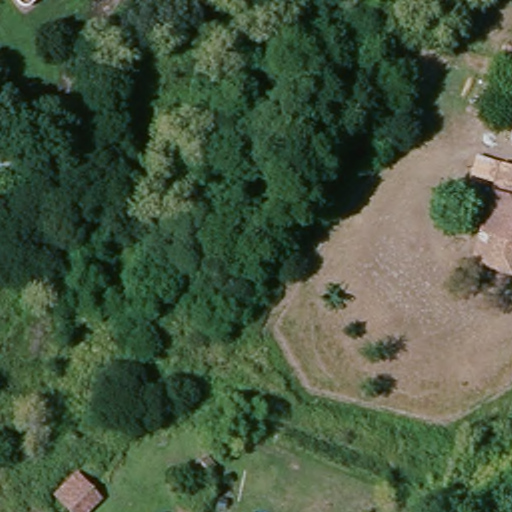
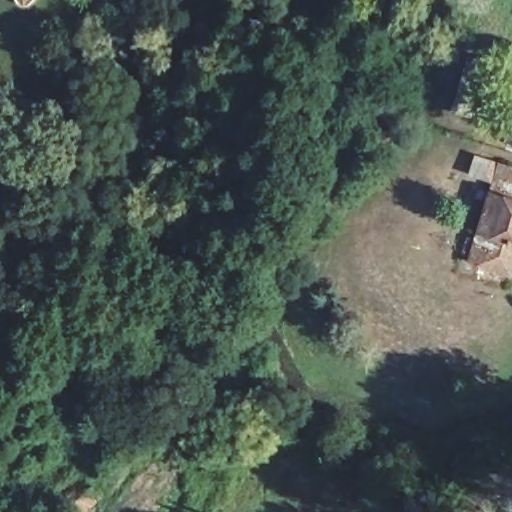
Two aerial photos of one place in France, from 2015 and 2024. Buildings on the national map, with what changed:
unchanged [(497,172),(512,177),(512,246),(505,268),(471,258),(497,172)]
unchanged [(63,502),(55,495),(72,477),(79,484),(85,490),(92,498),(80,512),(74,512),(69,507),(63,502)]

